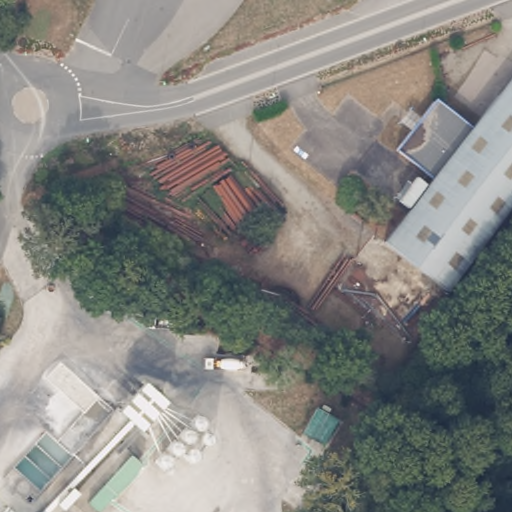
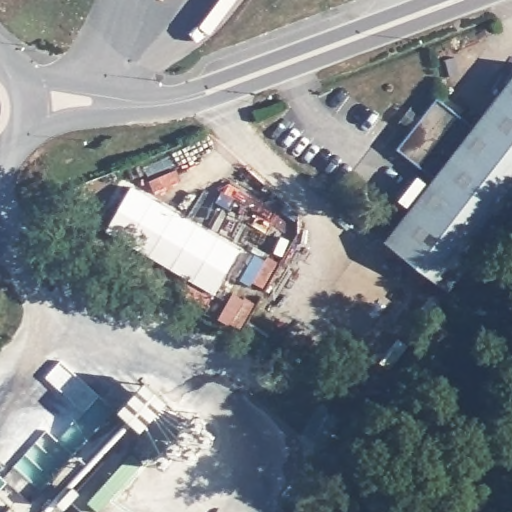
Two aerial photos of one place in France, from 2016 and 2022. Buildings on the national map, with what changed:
unchanged [(469,127),(512,73),(512,203),(442,291),(379,242),(429,179),(392,150),(407,130),(395,120),(405,109),(416,118),(432,99),(469,127)]
new [(237,250),(213,295),(106,231),(131,186),(237,250)]
unchanged [(149,385),(161,396),(137,425),(124,415),(149,385)]
unchanged [(141,464),(98,512),(82,512),(68,500),(119,443),(141,464)]
unchanged [(14,512),(5,512),(9,507),(14,512)]

